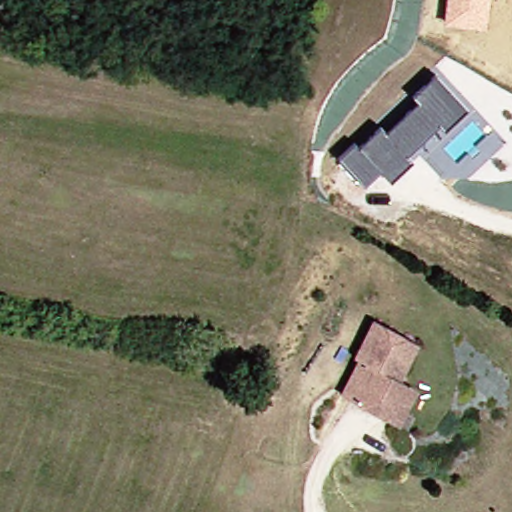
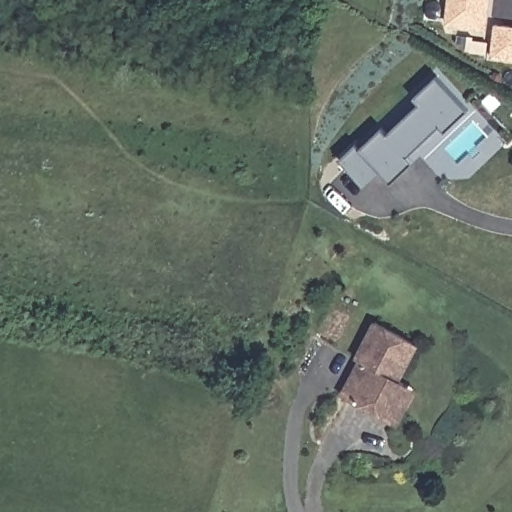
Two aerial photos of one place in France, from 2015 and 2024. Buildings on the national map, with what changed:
unchanged [(445,24),(448,0),(488,0),(485,28),(445,24)]
new [(494,26),(512,28),(512,59),(490,57),(494,26)]
unchanged [(447,130),(442,125),(408,156),(413,161),(391,184),(380,172),(363,187),(339,161),(356,144),(360,148),(382,128),(388,135),(419,105),(413,98),(437,75),(469,109),(447,130)]
unchanged [(408,418),(397,412),(358,392),(353,390),(371,355),(366,352),(385,317),(427,339),(410,374),(415,377),(427,382),(408,418)]

